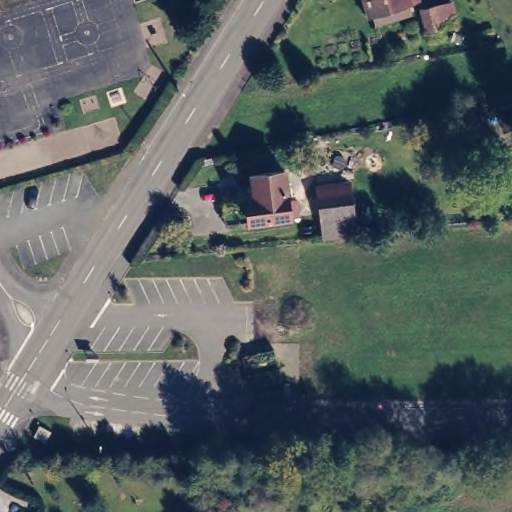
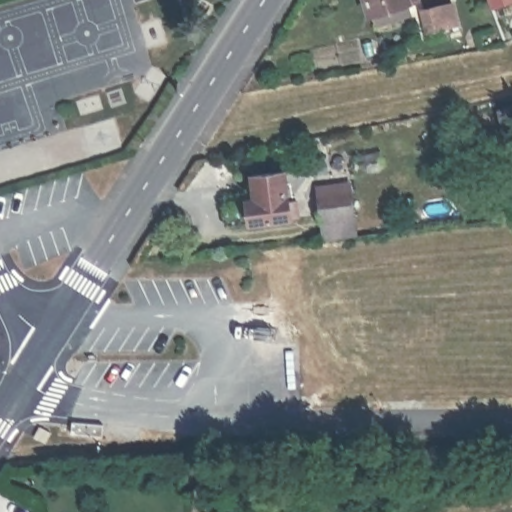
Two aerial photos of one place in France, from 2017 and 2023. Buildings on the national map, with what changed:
unchanged [(371,13),(367,0),(412,0),(371,13)]
unchanged [(455,28),(439,31),(432,1),(436,0),(449,0),(455,28)]
unchanged [(292,171),(298,218),(260,222),(257,200),(263,199),(260,175),(292,171)]
unchanged [(325,216),(323,196),(354,192),(357,213),(325,216)]

